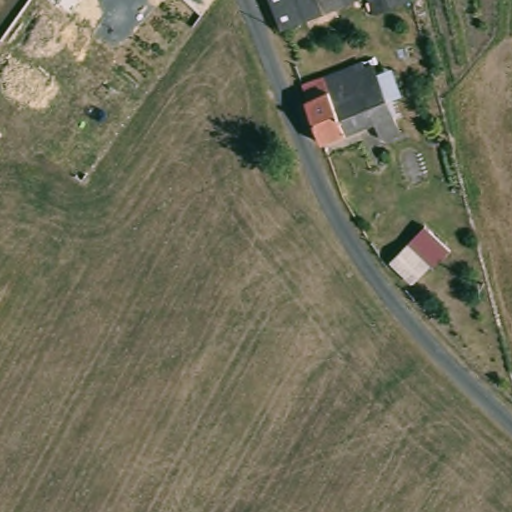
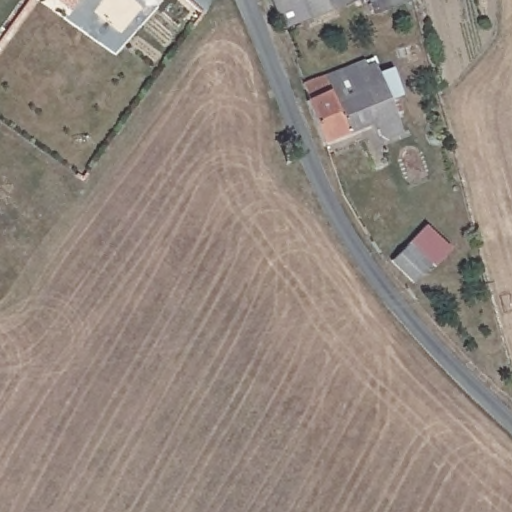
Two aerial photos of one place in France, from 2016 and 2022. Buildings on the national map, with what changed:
unchanged [(269,0),(299,0),(307,20),(302,22),(281,30),(269,0)]
unchanged [(343,5),(342,6),(327,12),(307,20),(299,0),(355,0),(343,5)]
unchanged [(386,5),(383,0),(397,0),(386,5)]
unchanged [(380,142),(373,124),(321,145),(321,144),(316,132),(313,126),(306,108),(306,107),(305,104),(308,102),(301,85),(352,66),(355,74),(372,68),(391,117),(398,135),(380,142)]
unchanged [(445,251),(410,284),(389,263),(425,229),(445,251)]

